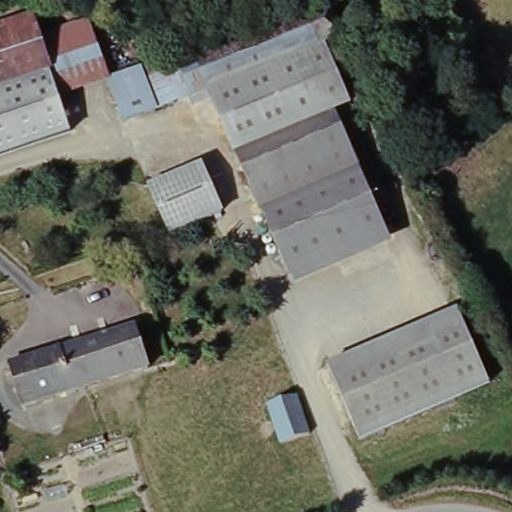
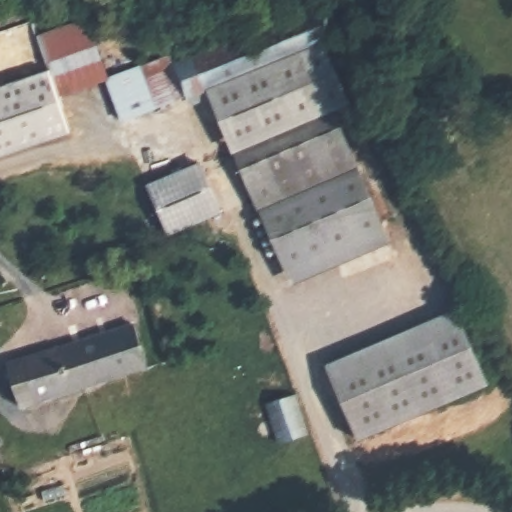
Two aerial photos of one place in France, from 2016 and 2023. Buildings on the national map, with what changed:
unchanged [(333,1),(348,37),(339,40),(330,44),(353,103),(336,110),(362,170),(264,211),(212,91),(190,99),(177,63),(309,10),(333,1)]
unchanged [(107,81),(63,97),(41,35),(90,18),(112,79),(107,81)]
unchanged [(41,35),(63,97),(74,134),(0,158),(0,32),(36,19),(41,35)]
unchanged [(190,99),(125,125),(107,81),(112,79),(172,53),(177,63),(190,99)]
unchanged [(168,235),(150,191),(202,169),(220,212),(168,235)]
unchanged [(385,224),(286,266),(264,211),(362,170),(385,224)]
unchanged [(330,366),(460,311),(492,383),(362,439),(330,366)]
unchanged [(137,325),(151,368),(24,407),(11,363),(137,325)]
unchanged [(285,439),(273,400),(300,391),(313,430),(285,439)]

